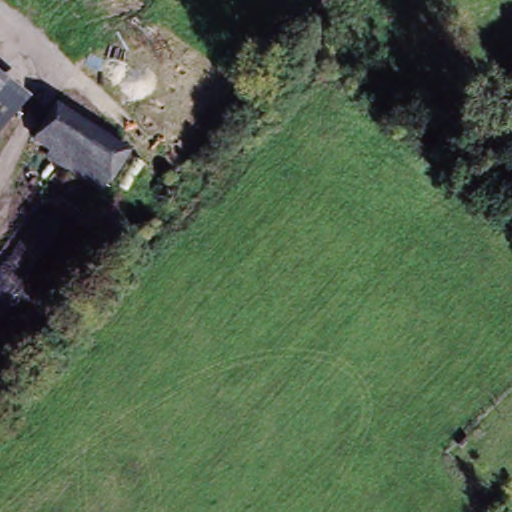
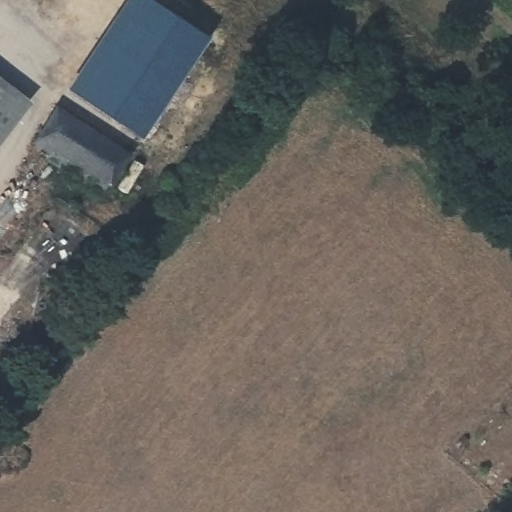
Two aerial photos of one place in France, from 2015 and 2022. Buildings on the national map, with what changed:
new [(156,0),(211,35),(145,138),(70,87),(126,0),(156,0)]
unchanged [(0,141),(0,83),(28,106),(0,141)]
unchanged [(45,150),(62,113),(127,146),(112,174),(72,153),(68,161),(45,150)]
unchanged [(72,153),(112,174),(102,194),(62,175),(68,161),(72,153)]

